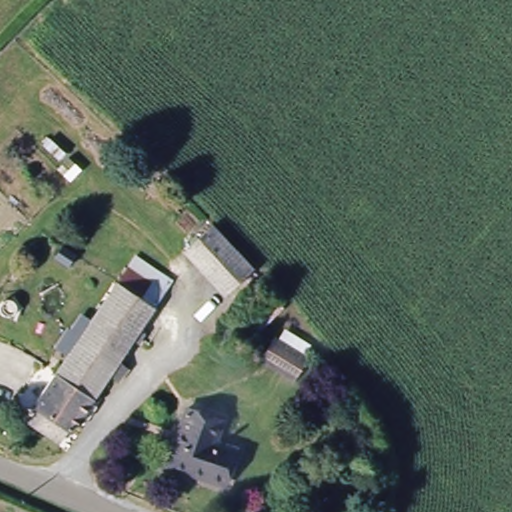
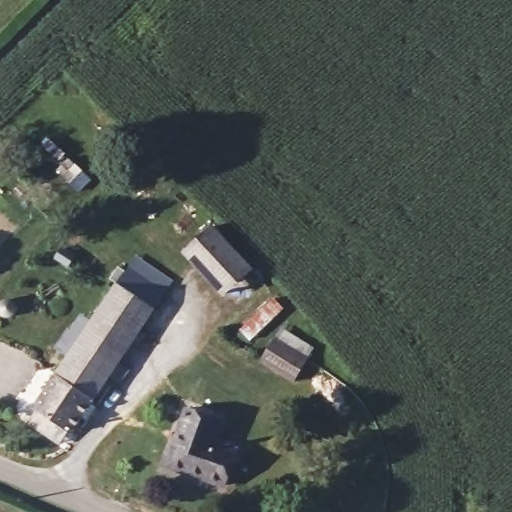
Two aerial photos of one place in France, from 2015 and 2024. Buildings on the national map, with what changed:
unchanged [(82,242),(59,214),(85,195),(107,223),(82,242)]
unchanged [(201,276),(182,254),(211,225),(233,248),(201,276)]
unchanged [(251,268),(222,298),(201,276),(233,248),(251,268)]
unchanged [(34,421),(41,409),(36,407),(121,280),(131,265),(140,251),(176,276),(167,290),(157,305),(121,356),(132,361),(124,376),(113,370),(75,430),(71,427),(63,438),(34,421)]
unchanged [(292,381),(261,358),(278,337),(310,360),(292,381)]
unchanged [(222,439),(240,445),(226,486),(170,463),(190,404),(231,420),(222,439)]

